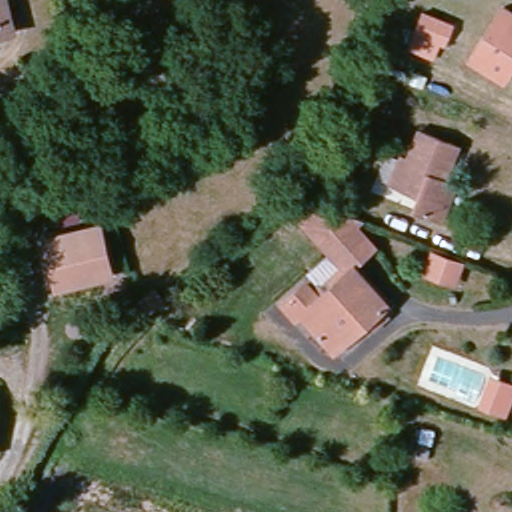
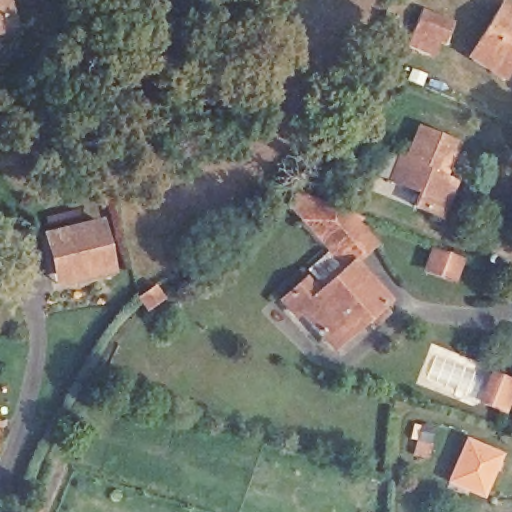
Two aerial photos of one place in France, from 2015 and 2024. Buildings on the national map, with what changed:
unchanged [(0,31),(0,0),(1,0),(8,29),(0,31)]
unchanged [(470,57),(503,4),(512,10),(512,65),(504,78),(470,57)]
unchanged [(432,56),(409,46),(424,11),(451,23),(444,43),(438,40),(432,56)]
unchanged [(437,220),(414,211),(420,198),(390,185),(390,184),(379,179),(387,159),(399,164),(400,159),(407,161),(418,133),(458,149),(445,183),(451,186),(456,188),(442,222),(437,220)]
unchanged [(355,228),(327,252),(289,209),(289,207),(299,198),(362,222),(355,228)]
unchanged [(116,272),(59,286),(44,229),(100,215),(116,272)]
unchanged [(337,349),(304,312),(299,315),(287,303),(302,289),(314,303),(324,294),(306,275),(329,254),(327,252),(355,228),(374,249),(349,272),(382,309),(337,349)]
unchanged [(150,308),(147,309),(142,303),(139,299),(142,297),(155,288),(158,293),(162,299),(150,308)]
unchanged [(490,404),(500,378),(512,383),(512,395),(505,411),(490,404)]
new [(447,483),(466,439),(504,457),(486,499),(447,483)]

